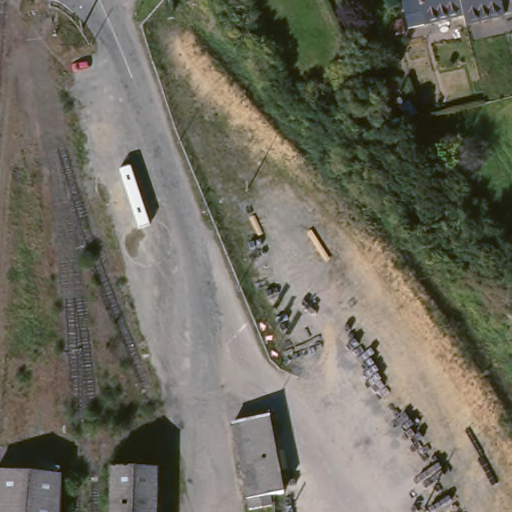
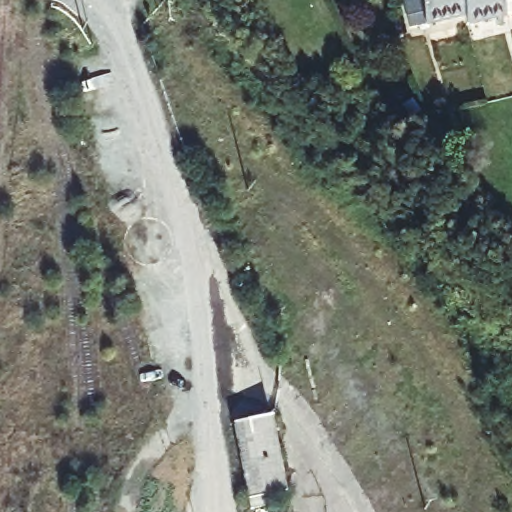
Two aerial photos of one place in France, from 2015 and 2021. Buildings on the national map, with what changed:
unchanged [(420,31),(404,34),(396,1),(398,0),(454,0),(459,21),(420,31)]
unchanged [(512,17),(500,20),(461,31),(459,21),(454,0),(512,0),(512,17)]
unchanged [(388,28),(397,26),(401,40),(392,42),(388,28)]
unchanged [(410,103),(418,114),(412,119),(410,120),(401,109),(408,104),(410,103)]
unchanged [(257,506),(244,509),(237,471),(229,424),(263,418),(265,428),(268,447),(276,493),(265,495),(266,505),(257,506)]
demolished [(156,512),(108,512),(108,506),(109,477),(156,478),(156,512)]
demolished [(57,512),(0,512),(0,480),(57,484),(57,502),(57,512)]

